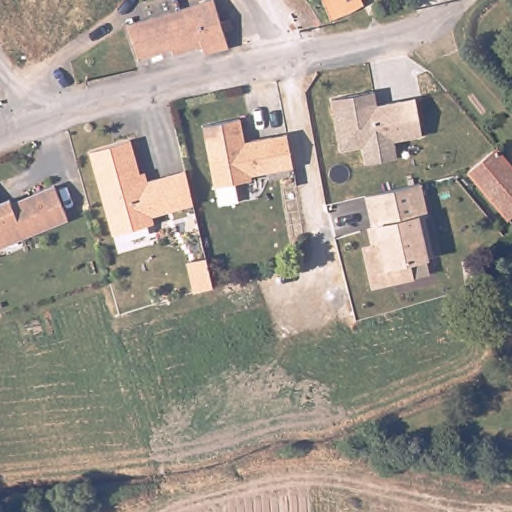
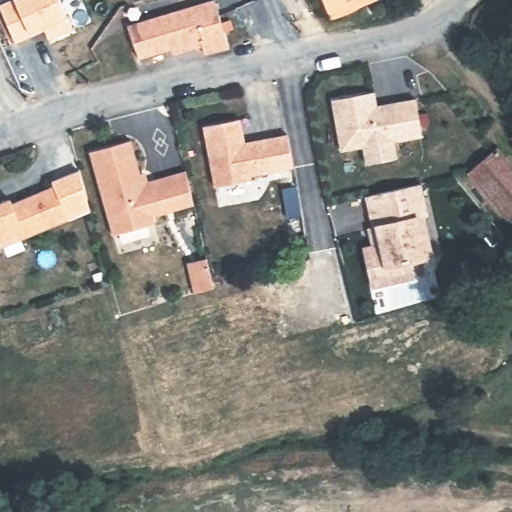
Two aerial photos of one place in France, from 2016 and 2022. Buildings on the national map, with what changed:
new [(20,41),(1,4),(10,0),(64,0),(76,26),(52,37),(48,28),(35,34),(20,41)]
unchanged [(130,24),(140,19),(199,0),(217,0),(220,11),(222,19),(232,17),(233,30),(225,31),(230,46),(192,56),(191,52),(206,50),(199,36),(187,41),(144,53),(139,55),(136,44),(130,24)]
unchanged [(383,9),(365,16),(361,4),(337,21),(327,0),(380,0),(383,9)]
unchanged [(423,139),(394,144),(398,161),(367,167),(364,149),(342,154),(332,102),(374,95),(377,109),(385,107),(416,101),(423,139)]
unchanged [(293,170),(250,177),(251,182),(213,187),(204,127),(241,121),(245,147),(252,147),(251,143),(287,137),(293,170)]
unchanged [(131,139),(142,182),(185,171),(189,188),(193,205),(151,215),(152,222),(112,232),(91,149),(131,139)]
unchanged [(471,166),(499,145),(512,162),(512,174),(491,192),(471,166)]
unchanged [(508,215),(491,192),(512,174),(512,213),(508,215)]
unchanged [(364,197),(382,193),(420,186),(426,217),(415,220),(423,260),(406,263),(409,279),(369,287),(362,249),(374,246),(371,228),(364,197)]
unchanged [(9,206),(18,202),(52,190),(64,222),(19,239),(0,245),(0,204),(7,201),(9,206)]
new [(197,292),(192,272),(190,262),(207,258),(209,268),(213,288),(197,292)]

